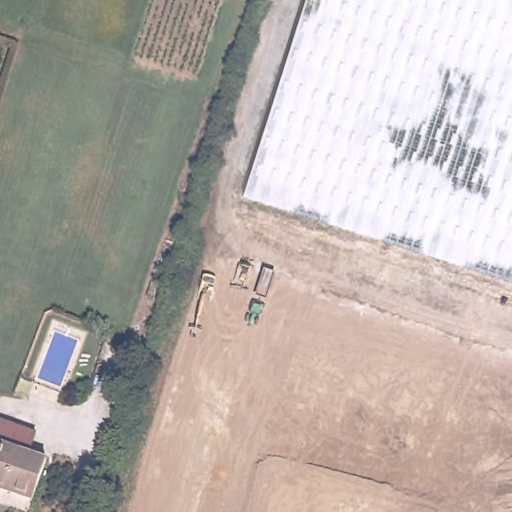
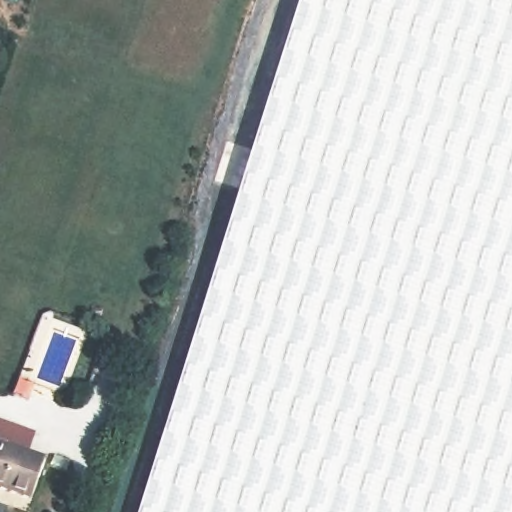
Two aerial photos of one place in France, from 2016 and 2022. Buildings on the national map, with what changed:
unchanged [(244,193),(305,0),(512,0),(512,279),(244,193)]
new [(244,193),(512,279),(512,512),(141,512),(244,193)]
unchanged [(0,488),(0,422),(35,434),(28,453),(45,459),(31,499),(0,488)]

